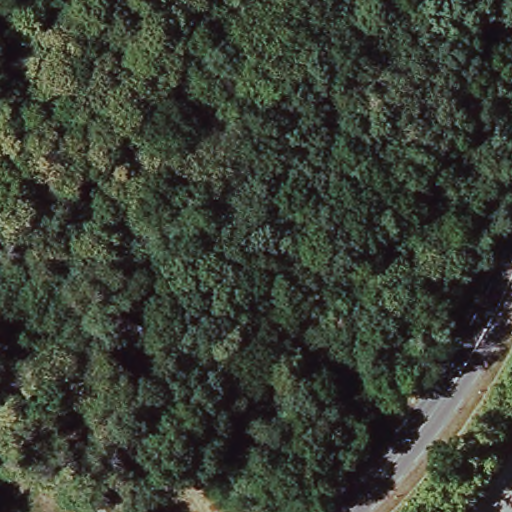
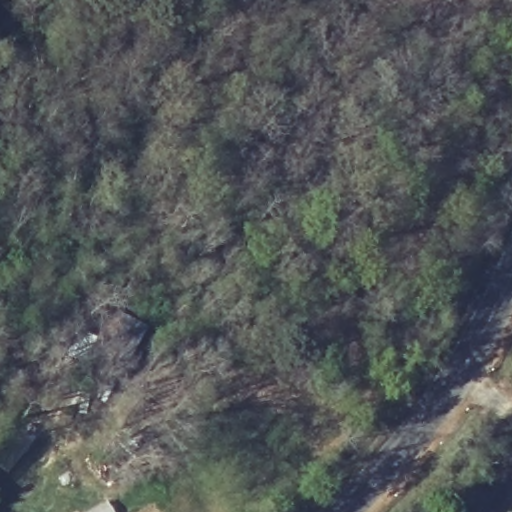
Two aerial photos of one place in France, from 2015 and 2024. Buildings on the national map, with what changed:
[]

